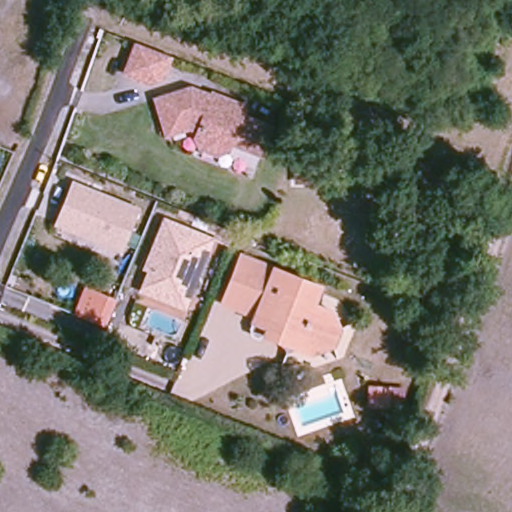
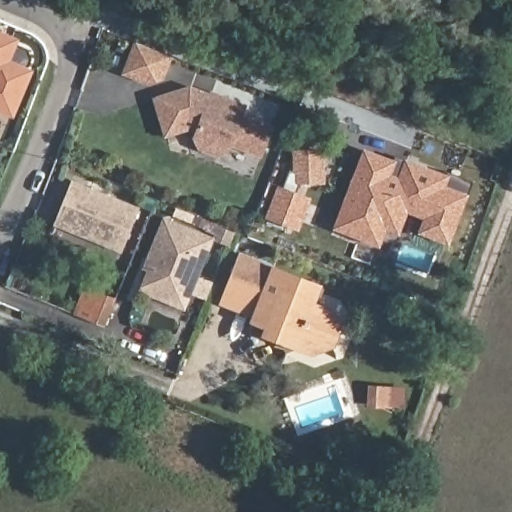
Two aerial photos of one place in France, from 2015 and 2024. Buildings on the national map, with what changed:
new [(17,45),(11,58),(32,67),(13,113),(0,108),(0,37),(17,45)]
unchanged [(162,80),(148,85),(122,76),(132,44),(172,57),(162,80)]
unchanged [(223,151),(211,156),(194,149),(189,137),(191,132),(183,128),(161,136),(149,100),(185,88),(206,96),(206,94),(240,107),(236,116),(266,127),(256,156),(225,144),(223,151)]
new [(379,247),(331,230),(362,149),(399,162),(404,156),(451,174),(447,187),(467,194),(448,247),(416,235),(422,219),(406,212),(398,234),(386,232),(379,247)]
unchanged [(0,159),(0,157),(1,157),(0,159)]
unchanged [(295,182),(295,162),(322,161),(322,182),(295,182)]
unchanged [(120,252),(52,225),(70,178),(139,206),(120,252)]
new [(298,232),(265,219),(278,185),(311,199),(298,232)]
unchanged [(138,292),(145,271),(140,269),(162,216),(214,237),(185,311),(138,292)]
unchanged [(253,320),(217,305),(237,255),(272,268),(253,320)]
unchanged [(320,287),(315,301),(308,318),(325,324),(313,355),(249,330),(253,320),(272,268),(320,287)]
unchanged [(109,329),(79,317),(90,287),(119,299),(109,329)]
unchanged [(333,307),(342,330),(334,350),(313,355),(325,324),(308,318),(315,301),(333,307)]
unchanged [(369,406),(370,387),(384,388),(383,407),(369,406)]

